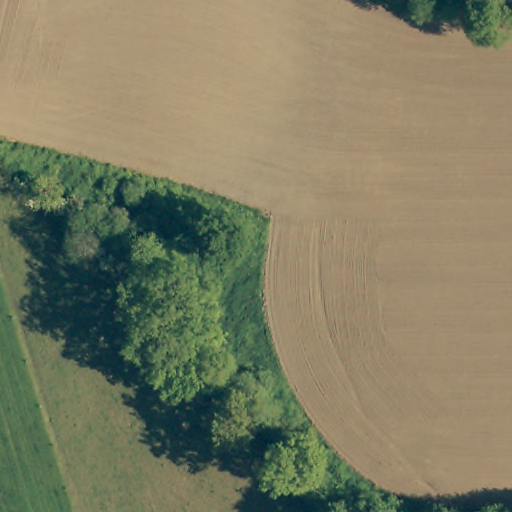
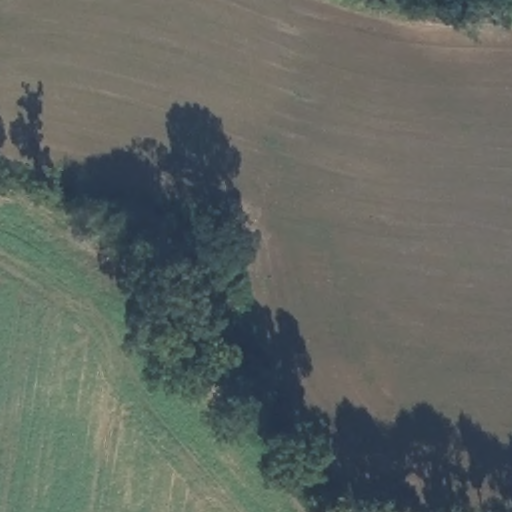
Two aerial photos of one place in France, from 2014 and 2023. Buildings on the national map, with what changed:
[]

